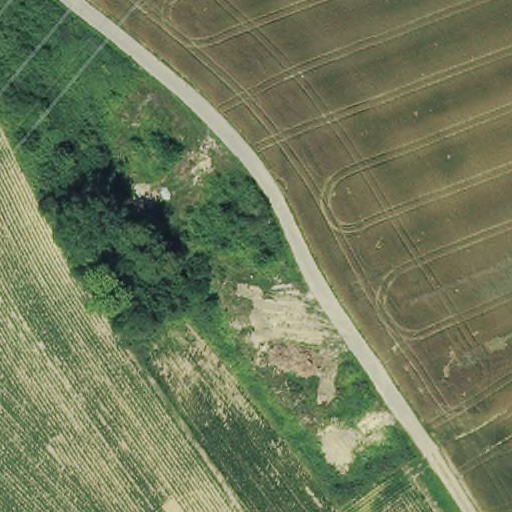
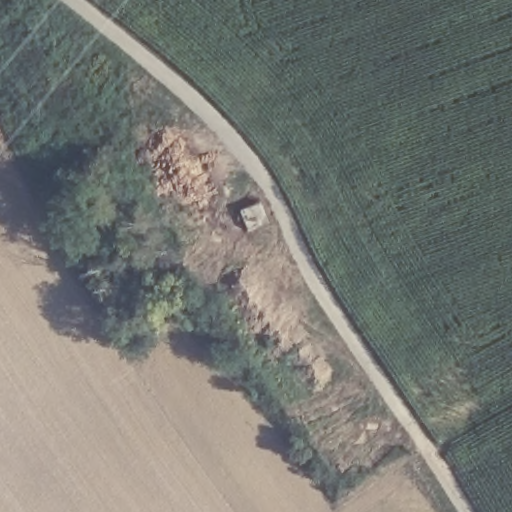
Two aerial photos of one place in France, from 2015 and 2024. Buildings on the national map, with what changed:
unchanged [(240,207),(261,199),(272,224),(250,232),(240,207)]

